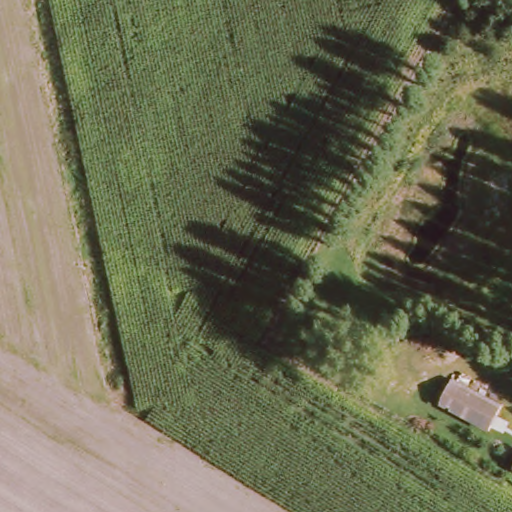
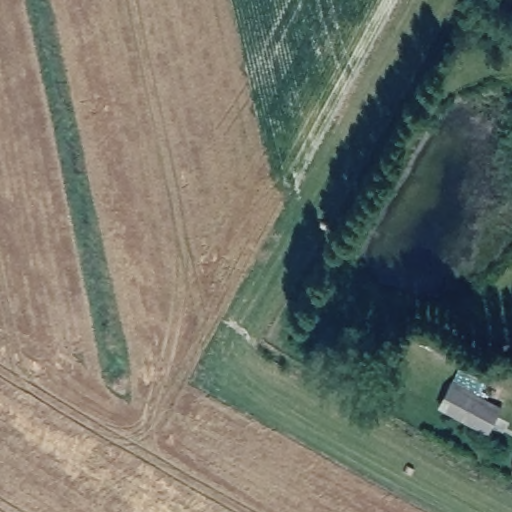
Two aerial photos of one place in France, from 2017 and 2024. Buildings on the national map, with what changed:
unchanged [(451,412),(462,393),(506,417),(496,435),(451,412)]

